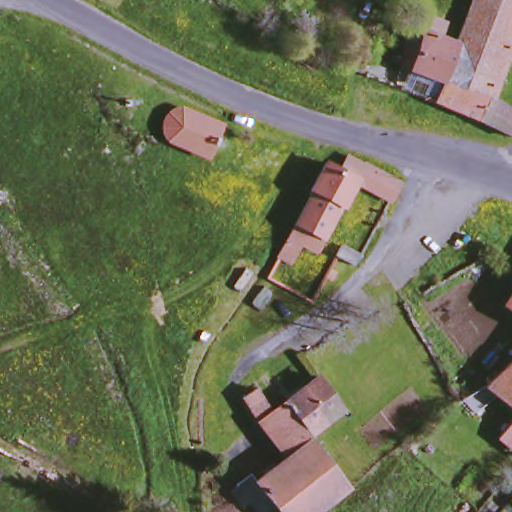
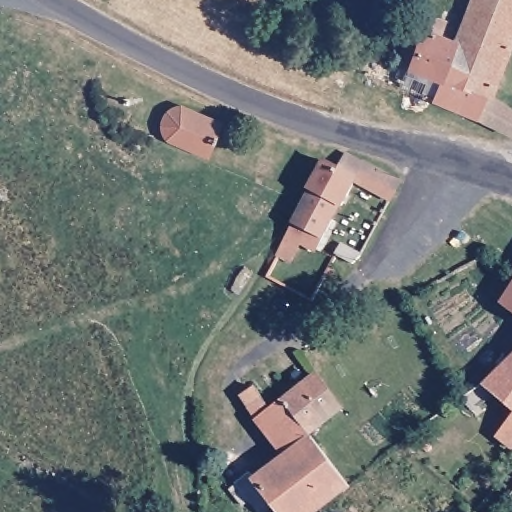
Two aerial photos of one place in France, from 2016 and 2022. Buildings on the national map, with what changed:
unchanged [(474,0),(512,0),(512,44),(491,94),(445,81),(459,43),(474,0)]
unchanged [(410,71),(403,69),(418,31),(412,29),(420,11),(451,22),(446,39),(459,43),(445,81),(410,71)]
unchanged [(437,105),(445,81),(491,94),(480,121),(437,105)]
unchanged [(491,94),(512,107),(512,135),(480,121),(491,94)]
unchanged [(174,137),(168,132),(167,127),(169,117),(171,114),(175,111),(179,108),(187,109),(226,125),(214,155),(174,137)]
unchanged [(361,164),(401,182),(393,197),(360,179),(346,205),(339,202),(315,249),(302,243),(293,255),(282,248),(314,187),(310,185),(325,159),(355,175),(361,164)]
unchanged [(343,246),(359,257),(355,263),(336,256),(343,246)]
unchanged [(512,303),(512,315),(507,312),(512,303)]
unchanged [(512,366),(512,409),(495,394),(470,417),(457,404),(478,390),(508,362),(511,367),(512,366)]
unchanged [(284,402),(320,376),(344,410),(309,436),(284,402)]
unchanged [(273,412),(284,402),(309,436),(348,488),(320,512),(281,512),(272,500),(257,512),(250,512),(244,504),(238,508),(227,493),(255,472),(260,478),(286,458),(238,397),(253,384),(273,412)]
unchanged [(512,421),(512,444),(501,434),(512,421)]
unchanged [(507,502),(512,497),(512,507),(507,502)]

